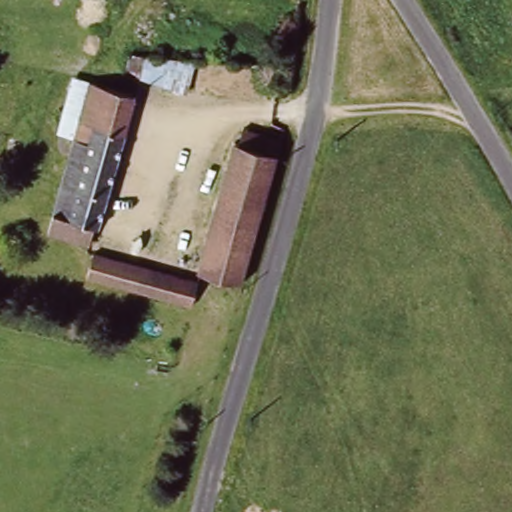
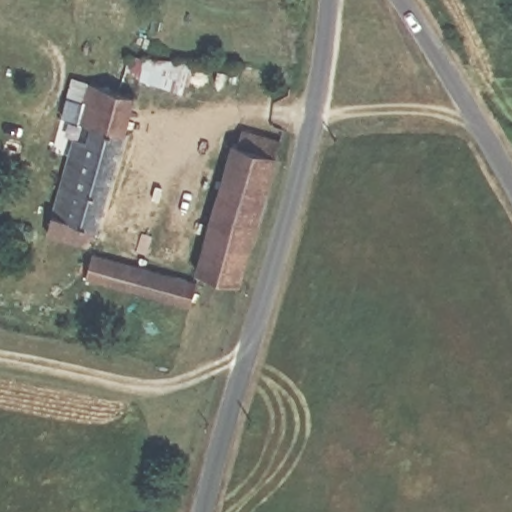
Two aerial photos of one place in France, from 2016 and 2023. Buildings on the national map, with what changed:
unchanged [(100,229),(92,229),(89,250),(48,239),(55,207),(75,142),(56,137),(71,76),(139,96),(100,229)]
unchanged [(274,157),(242,284),(200,271),(232,143),(249,143),(256,133),(282,137),(274,157)]
unchanged [(86,251),(197,287),(187,313),(79,275),(86,251)]

